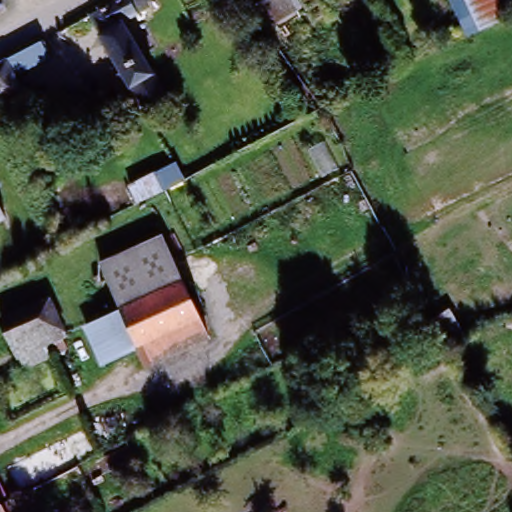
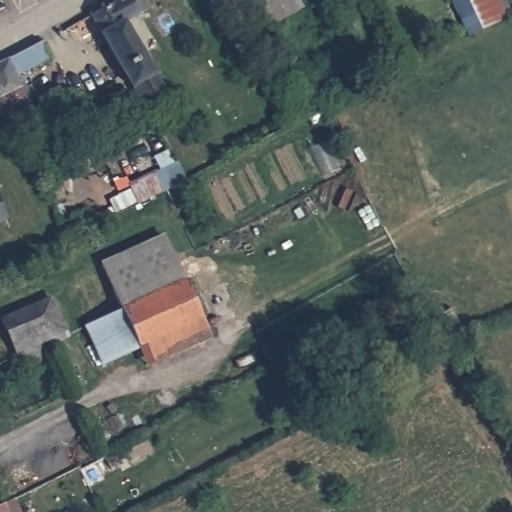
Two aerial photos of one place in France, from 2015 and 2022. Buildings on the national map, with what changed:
unchanged [(135,0),(145,0),(152,15),(127,30),(169,101),(147,114),(94,21),(135,0)]
unchanged [(266,27),(255,6),(265,0),(288,0),(294,11),(266,27)]
unchanged [(502,25),(468,42),(450,5),(459,0),(489,0),(502,25)]
unchanged [(30,106),(10,116),(11,119),(0,124),(0,71),(10,67),(30,106)]
unchanged [(184,181),(172,188),(167,182),(180,175),(184,181)]
unchanged [(0,222),(0,197),(9,218),(0,222)]
unchanged [(217,342),(149,372),(138,356),(102,372),(84,332),(122,312),(100,266),(167,236),(217,342)]
unchanged [(48,304),(65,341),(61,343),(66,353),(22,373),(0,326),(48,304)]
unchanged [(127,446),(134,458),(111,470),(105,458),(127,446)]
unchanged [(19,512),(0,512),(0,506),(13,499),(19,512)]

